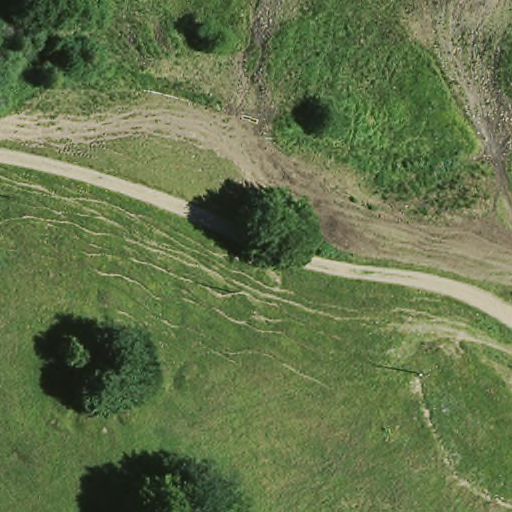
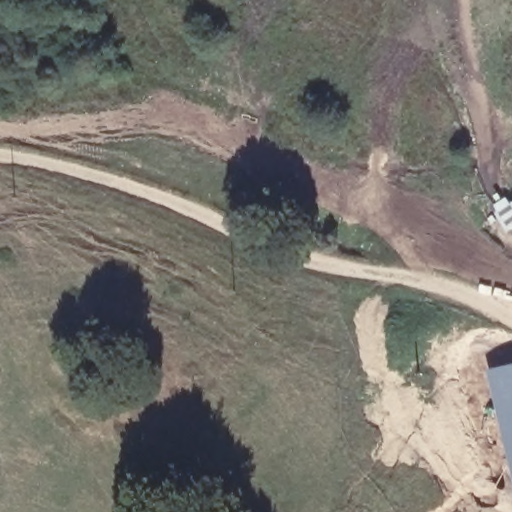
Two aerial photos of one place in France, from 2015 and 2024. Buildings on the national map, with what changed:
new [(485,370),(512,364),(512,484),(485,370)]

